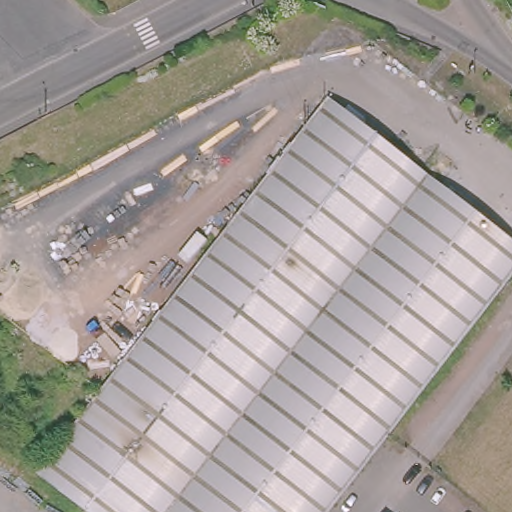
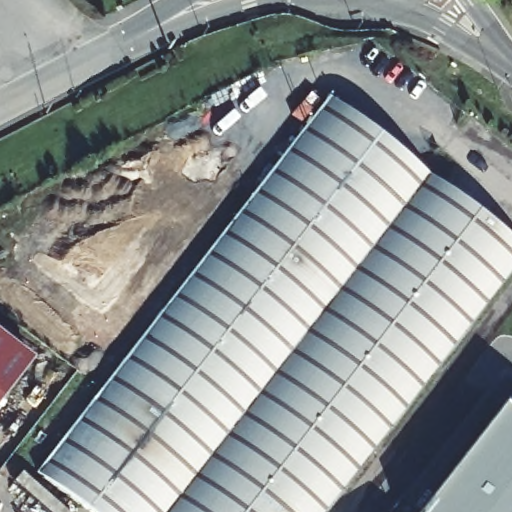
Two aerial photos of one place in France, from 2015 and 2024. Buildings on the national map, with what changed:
unchanged [(327,102),(426,179),(201,471),(101,393),(327,102)]
unchanged [(512,245),(512,276),(328,512),(254,512),(201,471),(426,179),(512,245)]
new [(0,402),(0,336),(32,361),(0,402)]
unchanged [(201,471),(254,512),(86,512),(38,475),(101,393),(201,471)]
new [(505,404),(512,410),(512,512),(421,512),(505,404)]

